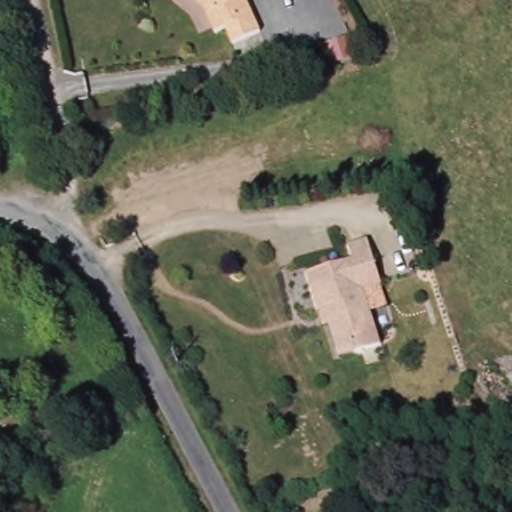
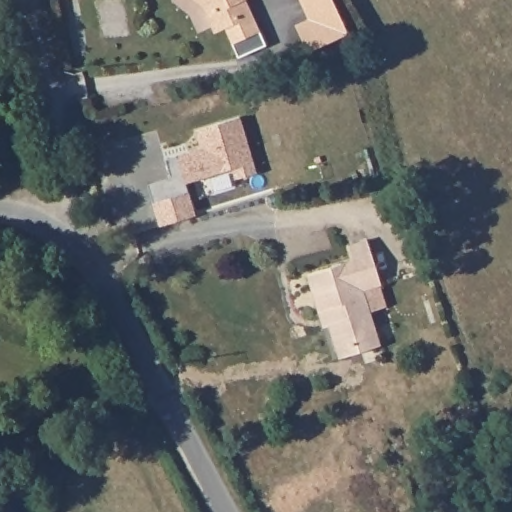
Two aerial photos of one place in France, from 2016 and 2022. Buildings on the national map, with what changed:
unchanged [(189,0),(252,0),(253,2),(246,5),(262,37),(235,50),(227,35),(216,40),(208,22),(204,12),(189,0)]
new [(348,32),(309,52),(295,24),(308,18),(300,0),(333,0),(348,32)]
new [(257,173),(236,179),(233,171),(187,183),(195,216),(159,226),(147,182),(171,176),(165,157),(200,147),(195,130),(239,117),(257,173)]
unchanged [(351,262),(346,245),(366,239),(379,285),(363,290),(379,347),(353,355),(351,348),(335,352),(327,325),(322,308),(317,310),(306,275),(351,262)]

